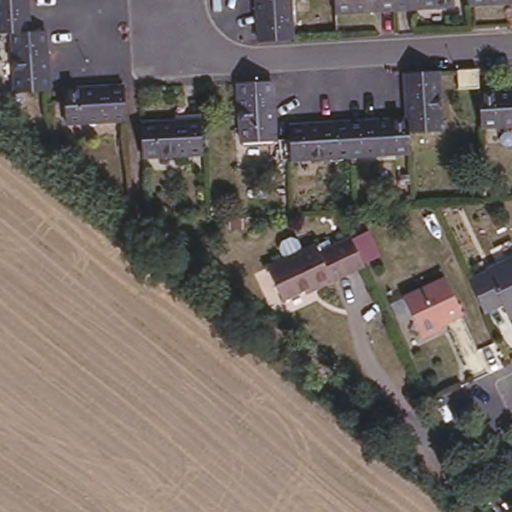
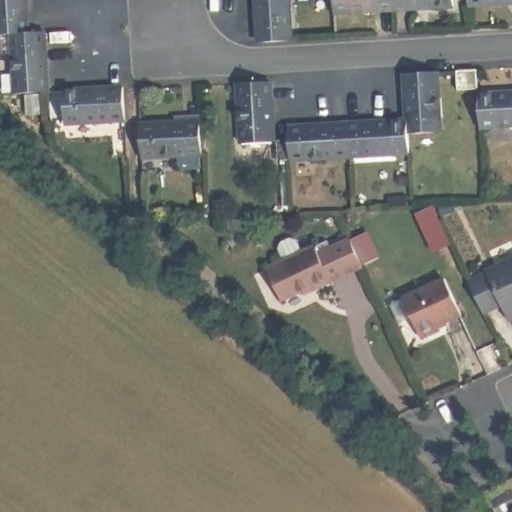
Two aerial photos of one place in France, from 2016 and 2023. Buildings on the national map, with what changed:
unchanged [(15,32),(0,32),(0,0),(31,0),(33,31),(47,32),(52,91),(17,93),(15,32)]
unchanged [(262,33),(260,0),(293,0),(296,31),(262,33)]
unchanged [(335,13),(334,0),(453,0),(453,5),(335,13)]
unchanged [(412,134),(413,151),(295,159),(292,136),(292,124),(413,115),(411,66),(437,64),(437,63),(458,61),(459,79),(445,80),(447,131),(412,134)]
unchanged [(244,141),(240,79),(273,76),(277,139),(244,141)]
unchanged [(67,121),(66,86),(125,84),(126,118),(67,121)]
unchanged [(512,120),(485,121),(482,91),(512,88),(512,120)]
unchanged [(146,156),(144,121),(194,119),(197,153),(146,156)]
unchanged [(368,270),(320,292),(318,289),(287,303),(273,274),(322,252),(326,260),(356,243),(368,270)]
unchanged [(512,307),(510,309),(502,295),(482,304),(467,274),(512,251),(512,307)]
unchanged [(459,310),(436,320),(437,324),(418,333),(401,294),(443,276),(459,310)]

